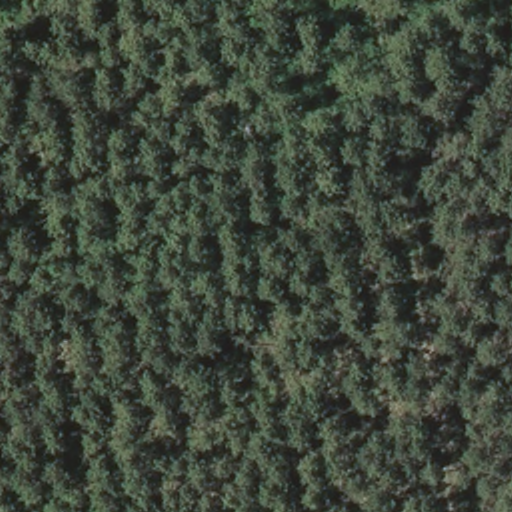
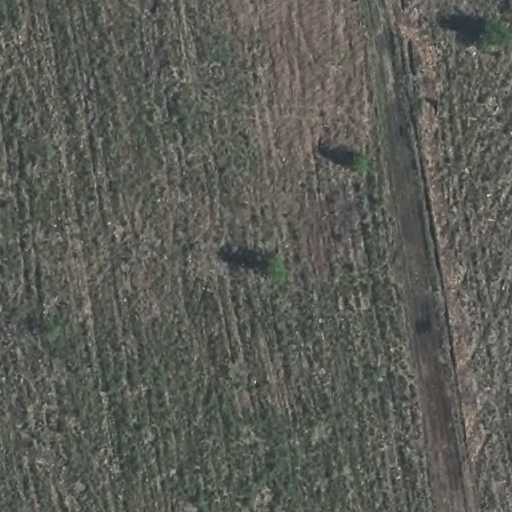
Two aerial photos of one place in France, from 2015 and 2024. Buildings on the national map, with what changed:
[]

